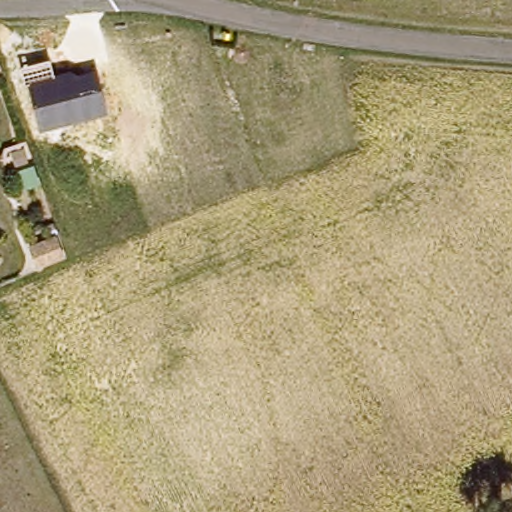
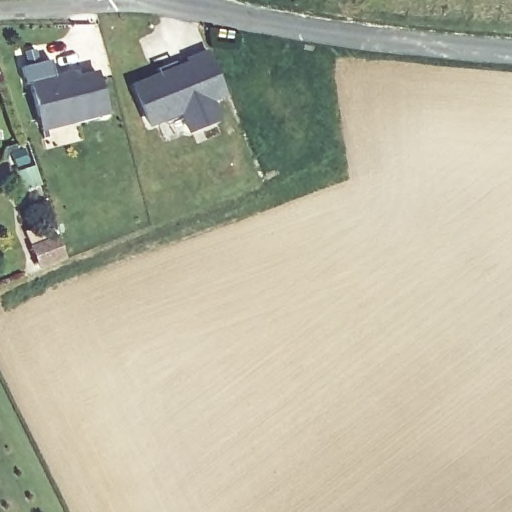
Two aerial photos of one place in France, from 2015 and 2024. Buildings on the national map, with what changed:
new [(179,115),(148,129),(129,83),(208,52),(225,96),(214,101),(222,121),(186,135),(179,115)]
unchanged [(51,60),(55,74),(71,69),(80,74),(96,70),(108,114),(39,131),(24,66),(51,60)]
unchanged [(68,267),(43,278),(34,258),(59,248),(68,267)]

